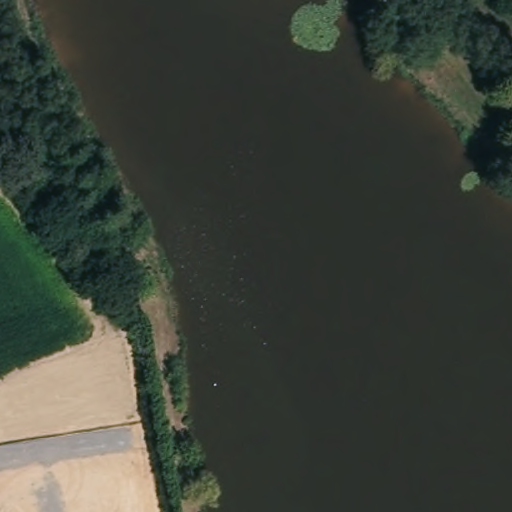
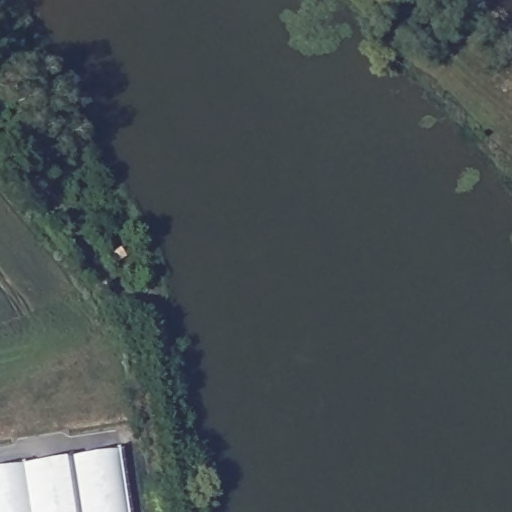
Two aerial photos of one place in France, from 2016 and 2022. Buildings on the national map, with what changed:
new [(117,449),(127,512),(0,512),(0,467),(117,449)]

